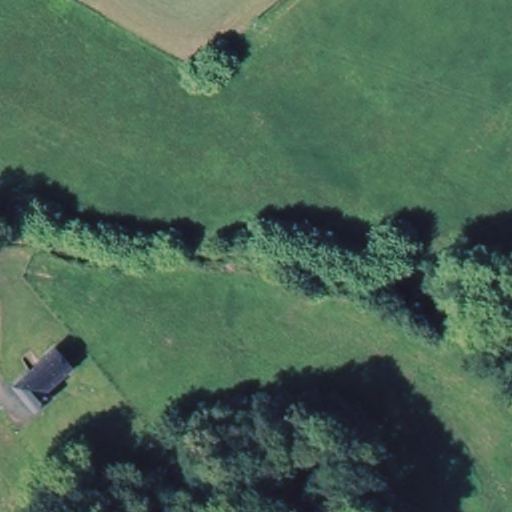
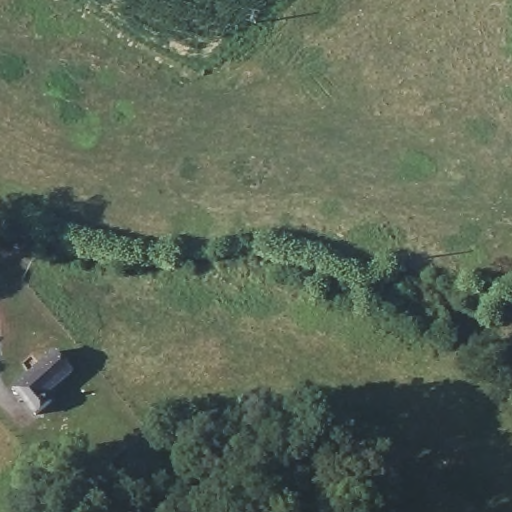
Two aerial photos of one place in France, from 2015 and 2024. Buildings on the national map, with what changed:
unchanged [(36,419),(15,395),(55,355),(75,379),(53,402),(36,419)]

